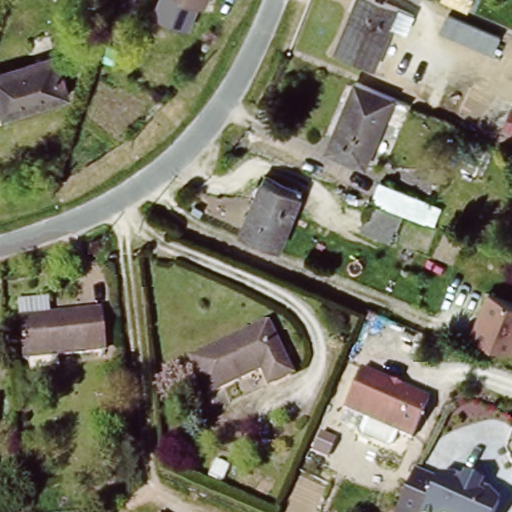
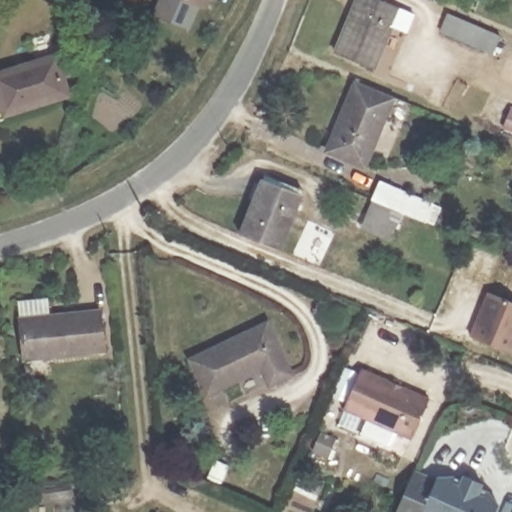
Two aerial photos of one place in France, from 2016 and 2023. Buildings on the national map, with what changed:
unchanged [(181,0),(200,0),(196,7),(181,0)]
unchanged [(369,62),(333,47),(354,0),(388,0),(395,3),(369,62)]
unchanged [(410,0),(421,0),(420,4),(410,0)]
unchanged [(482,34),(438,17),(445,0),(453,0),(491,15),(482,34)]
unchanged [(52,56),(65,93),(0,115),(0,113),(0,74),(52,56)]
unchanged [(380,91),(400,99),(370,171),(331,155),(361,83),(380,91)]
unchanged [(303,194),(281,247),(241,231),(264,177),(303,194)]
unchanged [(441,204),(434,225),(401,212),(390,241),(360,229),(379,180),(441,204)]
unchanged [(512,303),(512,354),(511,356),(470,335),(486,292),(512,303)]
unchanged [(22,364),(13,311),(105,305),(110,353),(22,364)]
unchanged [(287,367),(266,377),(260,363),(208,387),(192,353),(265,318),(287,367)]
unchanged [(345,412),(363,367),(430,398),(409,442),(345,412)]
unchanged [(261,432),(270,450),(256,456),(248,437),(261,432)]
unchanged [(421,512),(396,512),(414,468),(437,475),(421,512)]
unchanged [(439,470),(502,494),(495,512),(421,512),(439,470)]

